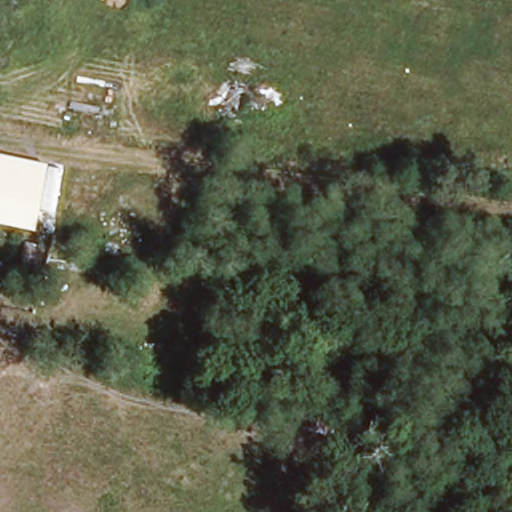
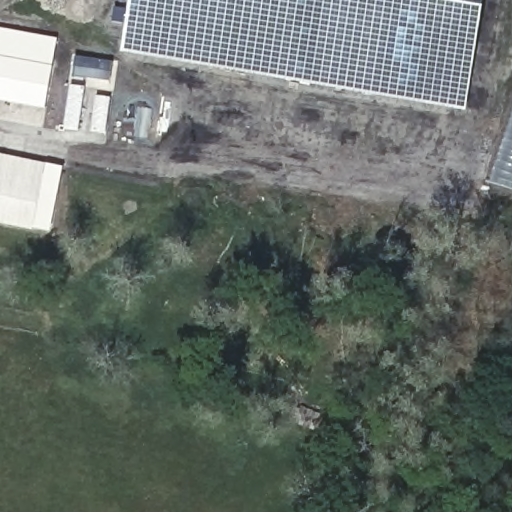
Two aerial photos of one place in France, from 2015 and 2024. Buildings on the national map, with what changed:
new [(485,0),(467,111),(120,52),(130,0),(485,0)]
new [(0,28),(57,39),(52,66),(0,57),(0,28)]
new [(45,109),(0,100),(0,57),(52,66),(45,109)]
new [(492,182),(512,123),(512,189),(492,182)]
unchanged [(34,230),(0,223),(0,155),(46,164),(34,230)]
new [(46,164),(64,166),(51,233),(34,230),(46,164)]

